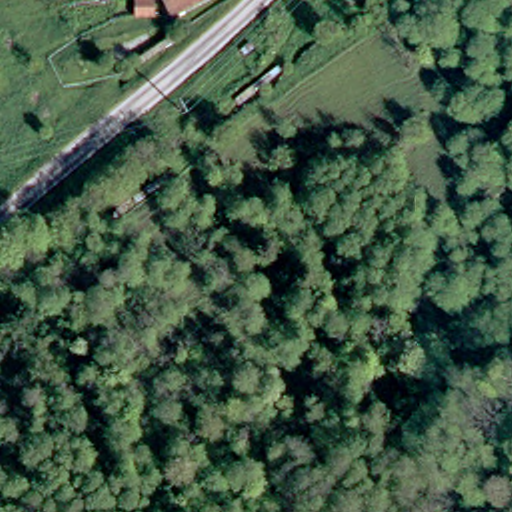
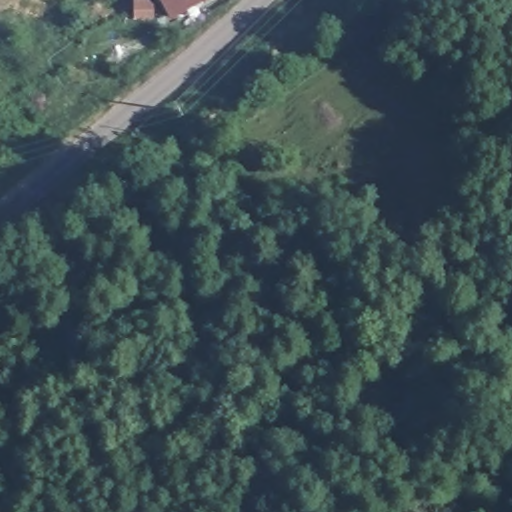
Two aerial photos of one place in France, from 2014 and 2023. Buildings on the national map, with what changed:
unchanged [(172,15),(165,0),(200,0),(172,15)]
unchanged [(135,17),(136,1),(155,3),(154,17),(135,17)]

